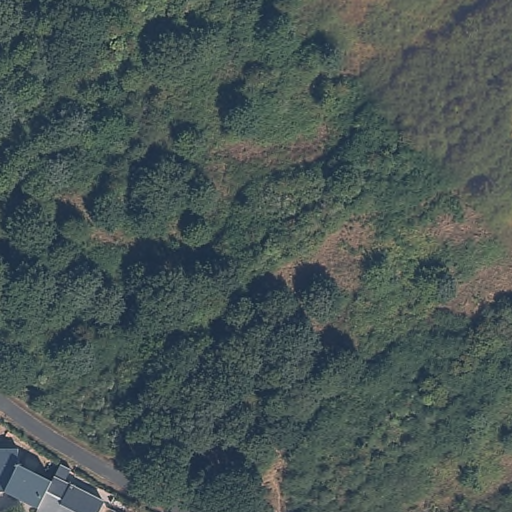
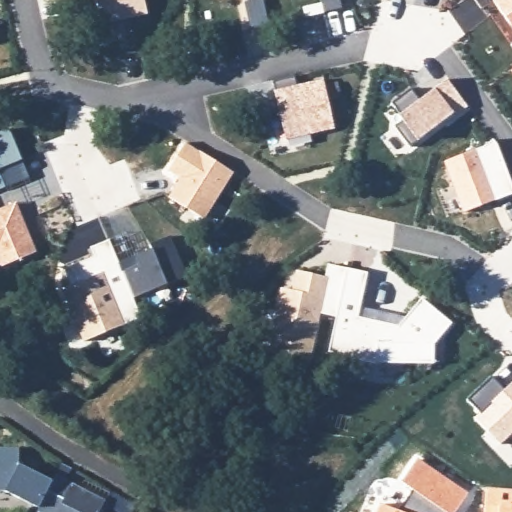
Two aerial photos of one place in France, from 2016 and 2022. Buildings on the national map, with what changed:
new [(149,16),(102,27),(97,0),(146,0),(149,16)]
new [(342,9),(304,19),(302,8),(321,3),(320,0),(340,0),(342,9)]
new [(512,29),(494,4),(500,0),(512,0),(512,29)]
new [(293,77),(296,86),(324,79),(325,85),(338,83),(340,96),(328,98),(335,131),(285,140),(271,81),(293,77)]
new [(413,90),(422,102),(449,82),(469,108),(456,118),(454,116),(412,149),(396,129),(406,121),(394,105),(413,90)]
new [(10,132),(22,163),(0,173),(0,137),(10,132)]
new [(495,142),(499,147),(512,181),(512,197),(466,214),(446,164),(485,149),(495,142)]
new [(187,145),(235,175),(205,222),(171,200),(182,181),(170,173),(187,145)]
new [(6,191),(0,193),(0,177),(6,191)]
new [(36,256),(2,269),(0,263),(0,214),(16,207),(27,235),(31,244),(36,256)]
new [(141,268),(138,259),(153,253),(151,248),(172,239),(188,280),(134,302),(124,275),(141,268)]
new [(72,288),(65,272),(96,260),(92,251),(110,243),(124,275),(134,302),(143,321),(85,345),(63,292),(72,288)]
new [(271,314),(278,315),(283,291),(294,294),(299,274),(327,280),(330,267),(348,271),(348,272),(338,320),(322,317),(312,364),(269,355),(274,335),(266,333),(271,314)]
new [(338,320),(348,272),(369,276),(359,320),(401,329),(423,301),(453,325),(435,347),(435,366),(382,354),(380,365),(330,355),(338,320)]
new [(505,389),(512,383),(512,468),(471,423),(480,414),(466,400),(492,376),(505,389)]
unchanged [(6,492),(0,492),(0,451),(17,451),(20,466),(53,483),(60,463),(74,470),(70,483),(105,501),(100,512),(37,512),(41,509),(6,492)]

